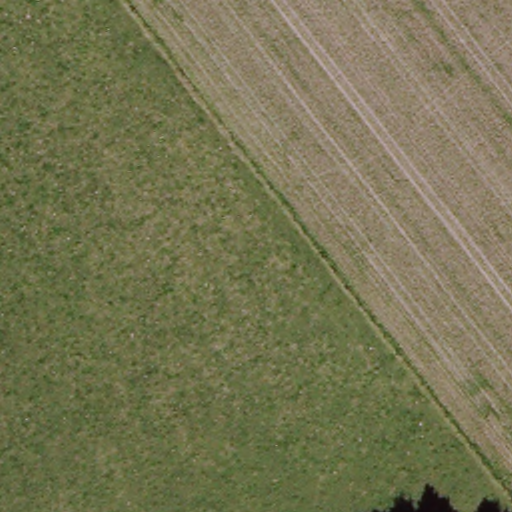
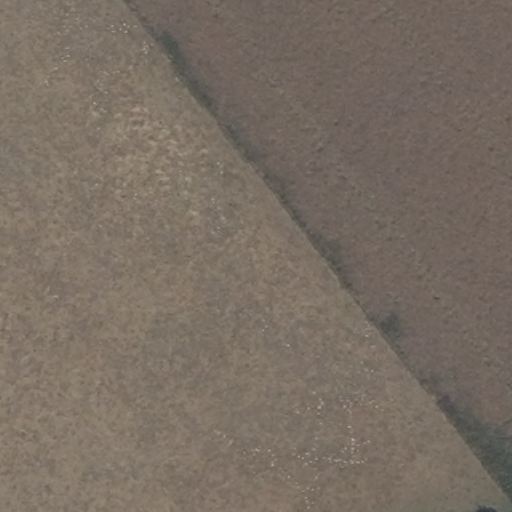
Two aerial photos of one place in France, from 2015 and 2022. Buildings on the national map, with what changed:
[]

